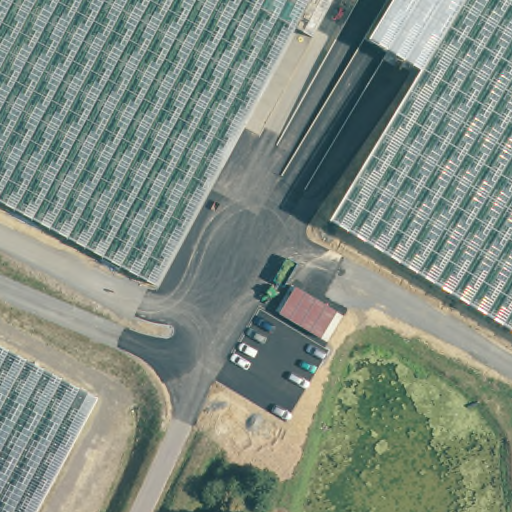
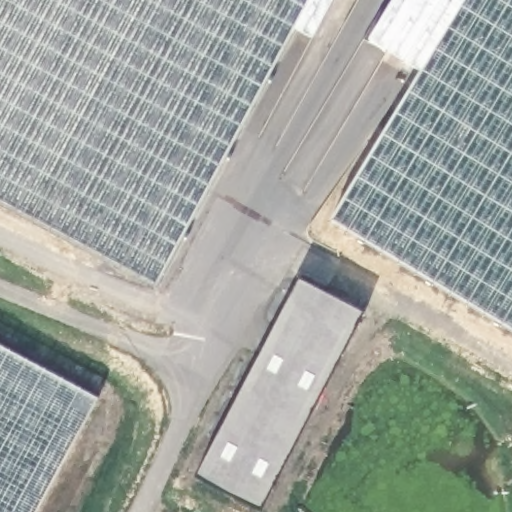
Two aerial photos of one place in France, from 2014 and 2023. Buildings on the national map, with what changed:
unchanged [(156,282),(0,199),(0,0),(307,0),(294,25),(156,282)]
unchanged [(330,0),(312,34),(294,25),(307,0),(330,0)]
unchanged [(419,72),(368,42),(394,0),(512,0),(512,333),(329,222),(419,72)]
new [(299,280),(364,313),(261,511),(196,477),(299,280)]
unchanged [(41,512),(0,512),(0,345),(101,400),(41,512)]

